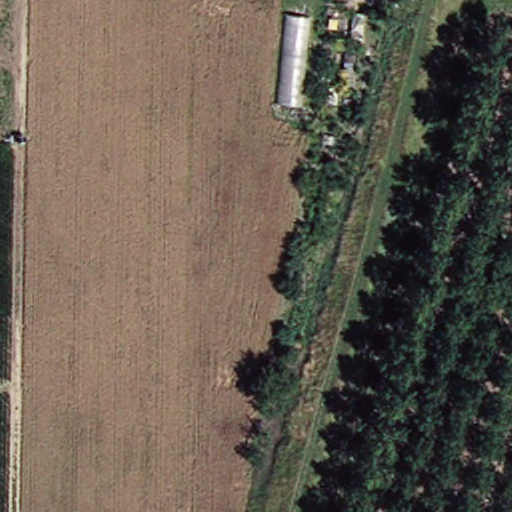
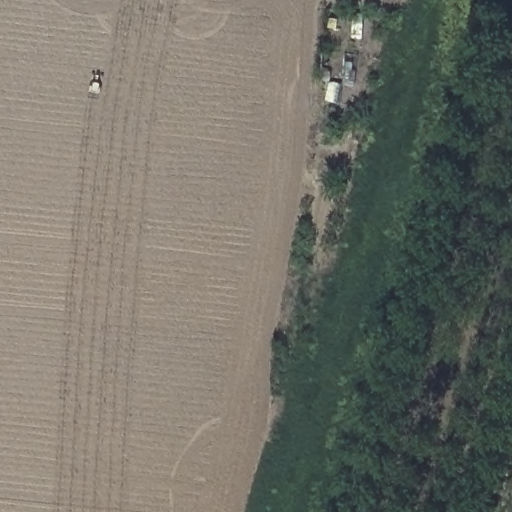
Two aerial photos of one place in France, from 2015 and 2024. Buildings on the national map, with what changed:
demolished [(313,19),(303,107),(275,105),(284,16),(313,19)]

